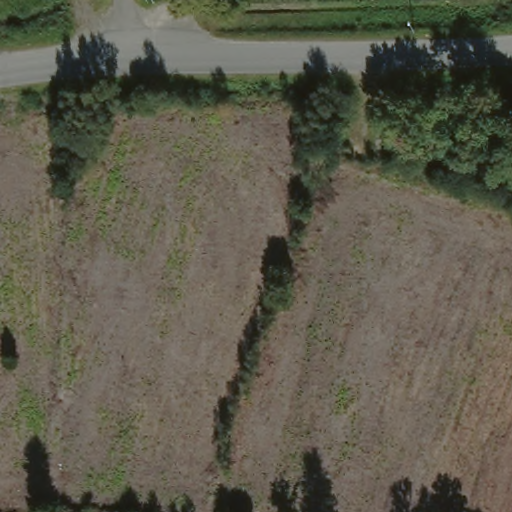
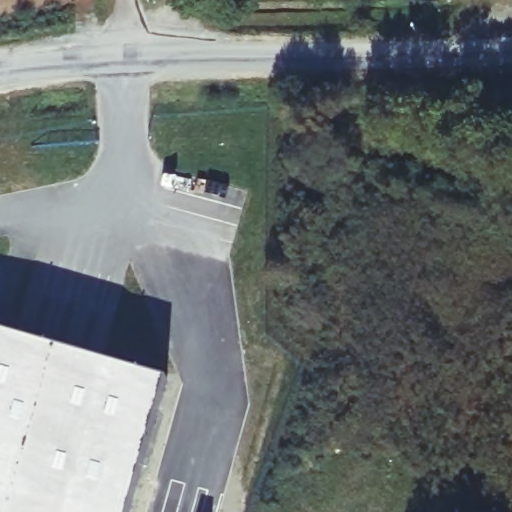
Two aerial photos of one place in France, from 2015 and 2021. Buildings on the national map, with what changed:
new [(167,380),(129,512),(0,512),(0,331),(167,380)]

